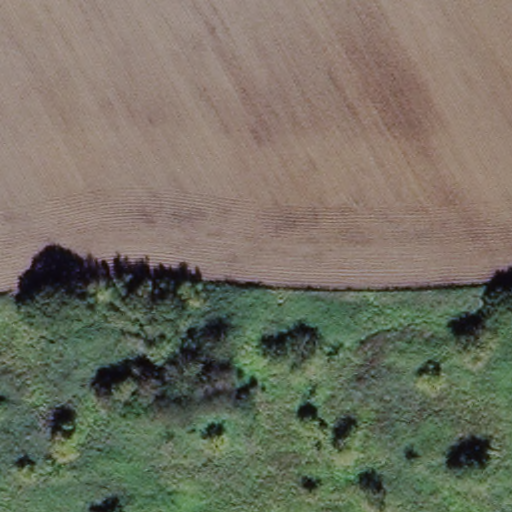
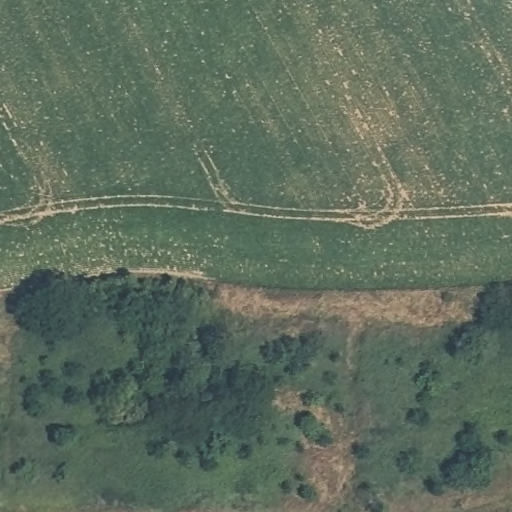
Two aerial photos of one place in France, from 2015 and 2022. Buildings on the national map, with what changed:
[]

